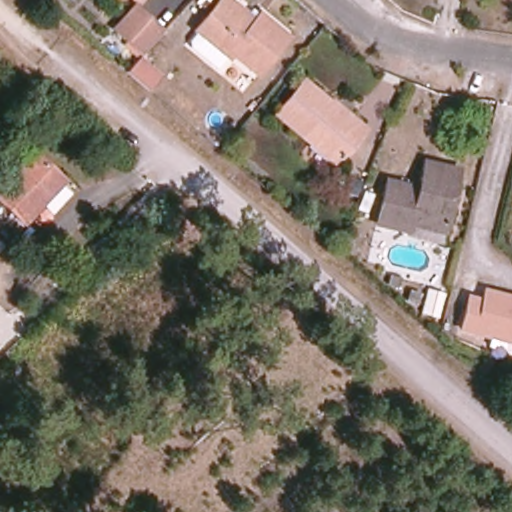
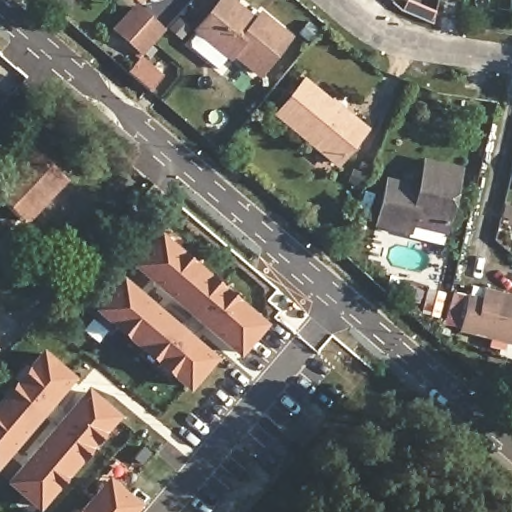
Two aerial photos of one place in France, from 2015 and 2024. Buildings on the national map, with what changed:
unchanged [(195,32),(221,0),(227,0),(254,23),(260,16),(287,39),(258,74),(234,53),(227,60),(195,32)]
unchanged [(115,25),(135,2),(163,26),(143,50),(115,25)]
unchanged [(138,55),(159,73),(148,86),(126,69),(138,55)]
unchanged [(276,115),(303,81),(363,130),(336,164),(276,115)]
unchanged [(30,152),(60,180),(23,221),(0,199),(0,185),(30,152)]
unchanged [(410,225),(408,233),(375,224),(386,180),(418,188),(421,176),(424,162),(459,170),(455,185),(443,233),(410,225)]
new [(131,266),(157,232),(266,324),(237,357),(131,266)]
unchanged [(3,245),(0,248),(0,241),(3,245)]
new [(187,392),(90,309),(119,275),(215,357),(187,392)]
unchanged [(468,298),(483,302),(485,292),(512,299),(512,342),(461,330),(468,298)]
new [(0,464),(0,395),(38,349),(73,378),(0,464)]
new [(85,388),(118,416),(37,510),(2,482),(85,388)]
new [(139,505),(133,512),(76,512),(107,476),(139,505)]

